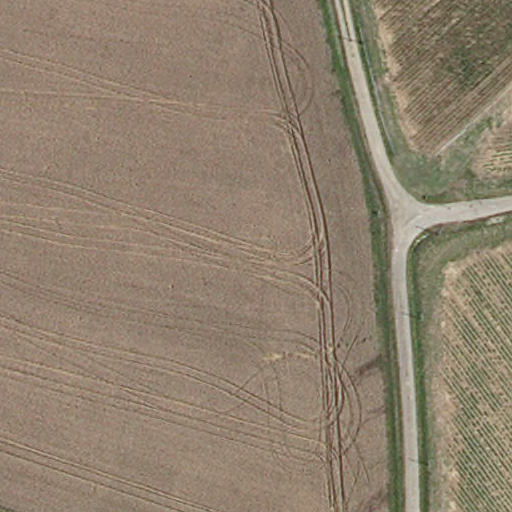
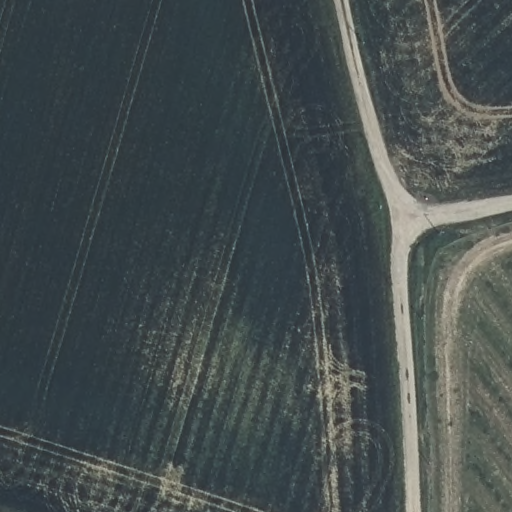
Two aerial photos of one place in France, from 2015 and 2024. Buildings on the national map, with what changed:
[]

